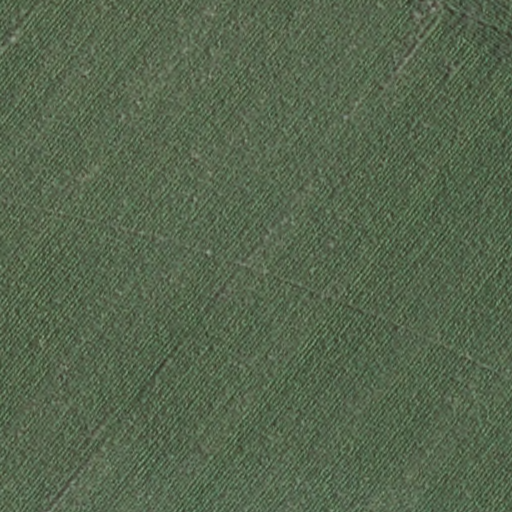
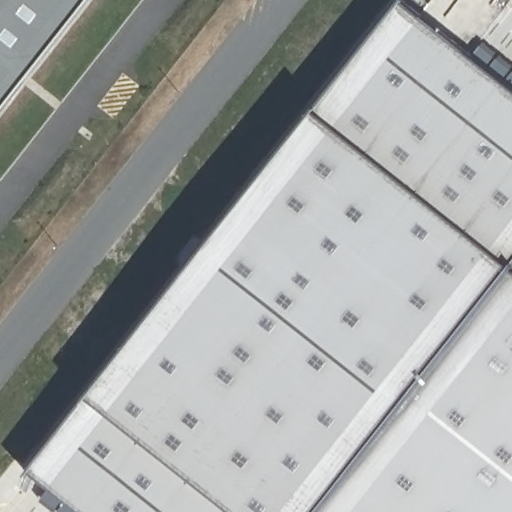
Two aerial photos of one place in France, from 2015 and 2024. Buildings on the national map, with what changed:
new [(0,121),(0,0),(94,0),(0,121)]
new [(89,395),(314,110),(400,0),(401,0),(512,88),(512,273),(322,512),(85,512),(29,469),(89,395)]
new [(322,512),(512,273),(512,512),(322,512)]

